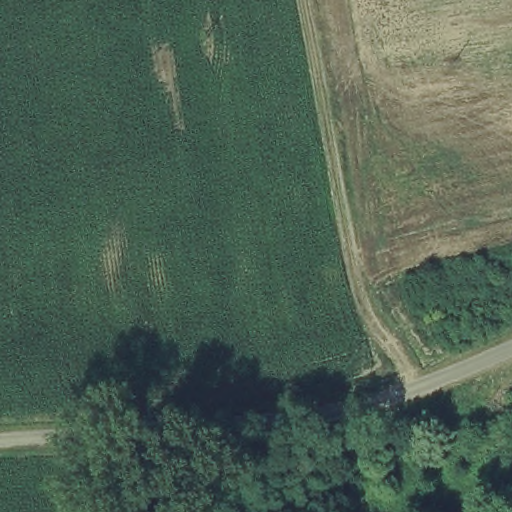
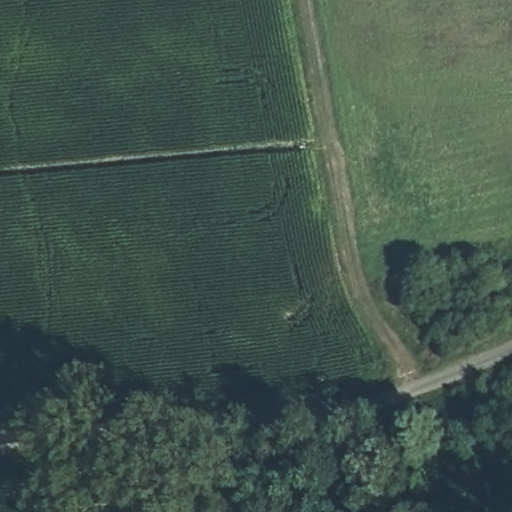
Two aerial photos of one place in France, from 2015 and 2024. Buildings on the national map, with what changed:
unchanged [(337,512),(334,483),(356,476),(360,512),(337,512)]

